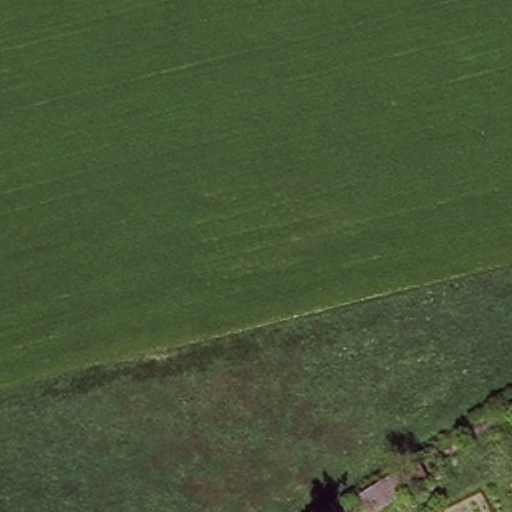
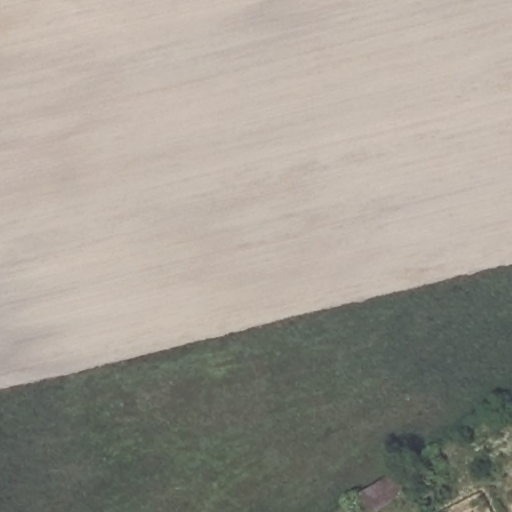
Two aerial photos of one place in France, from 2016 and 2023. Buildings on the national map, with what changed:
unchanged [(427,453),(418,459),(413,452),(422,446),(427,453)]
unchanged [(413,480),(362,512),(357,512),(350,499),(345,494),(400,459),(413,480)]

